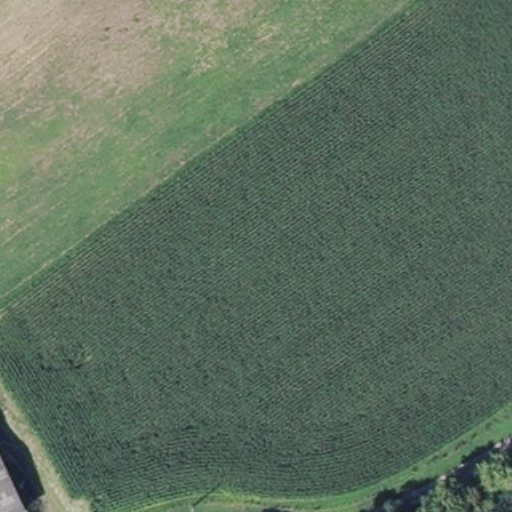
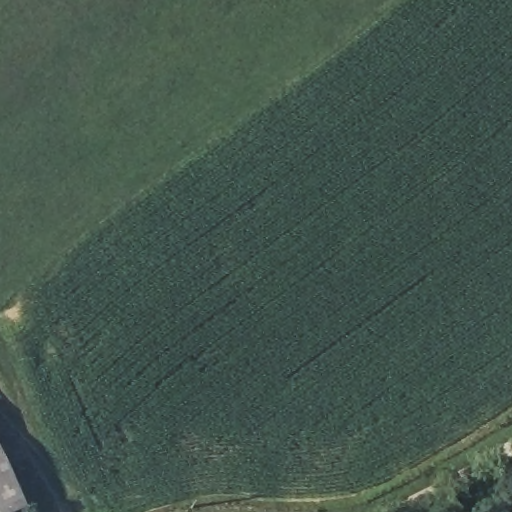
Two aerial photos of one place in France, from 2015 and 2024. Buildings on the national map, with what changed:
unchanged [(28,499),(2,512),(0,512),(0,445),(28,499)]

